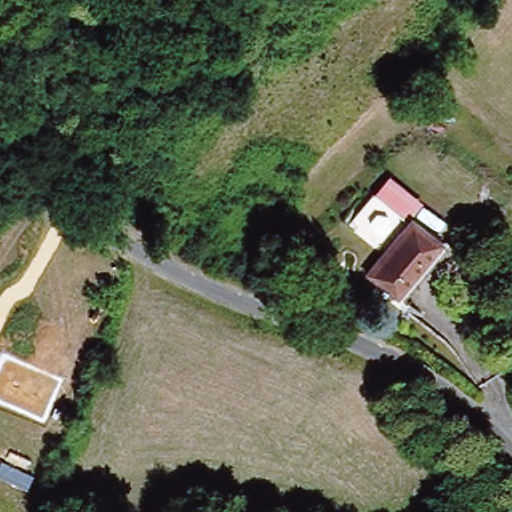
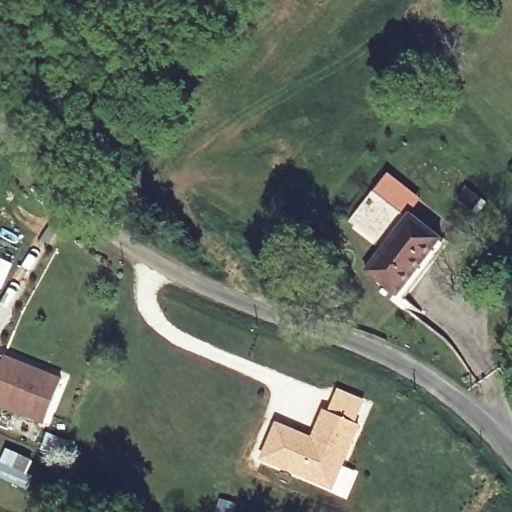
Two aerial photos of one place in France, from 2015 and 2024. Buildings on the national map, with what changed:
unchanged [(382,249),(353,226),(377,195),(437,248),(391,304),(358,279),(382,249)]
new [(45,425),(0,407),(0,371),(6,356),(62,380),(45,425)]
new [(275,422),(310,437),(324,410),(329,413),(338,390),(365,401),(355,423),(361,425),(333,491),(258,459),(275,422)]

